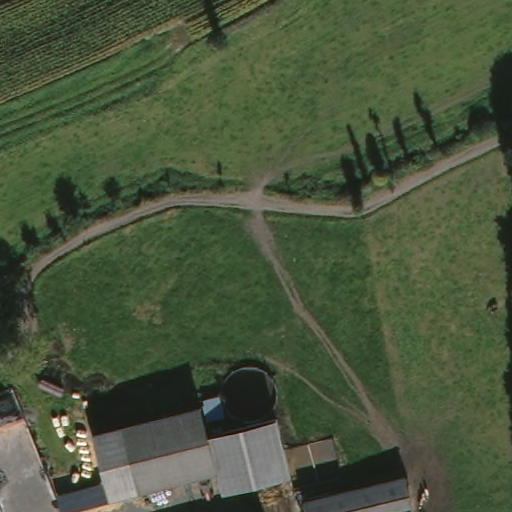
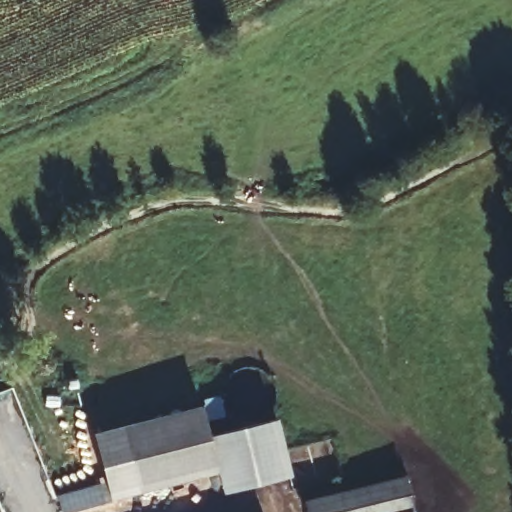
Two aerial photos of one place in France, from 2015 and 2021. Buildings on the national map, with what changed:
unchanged [(201,408),(211,436),(275,419),(293,481),(225,493),(216,478),(111,503),(92,435),(201,408)]
unchanged [(407,474),(415,507),(395,512),(313,512),(310,498),(407,474)]
unchanged [(417,512),(395,512),(415,507),(417,512)]

